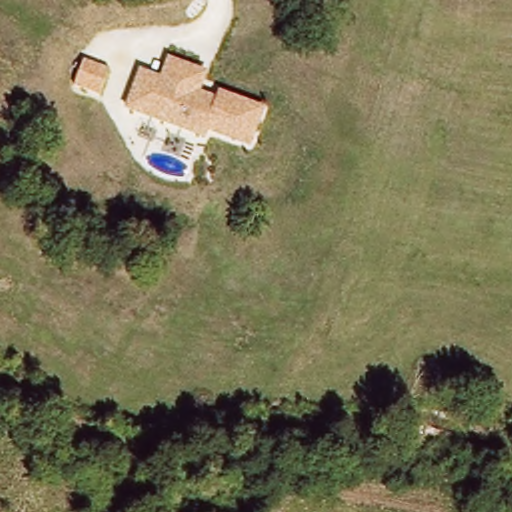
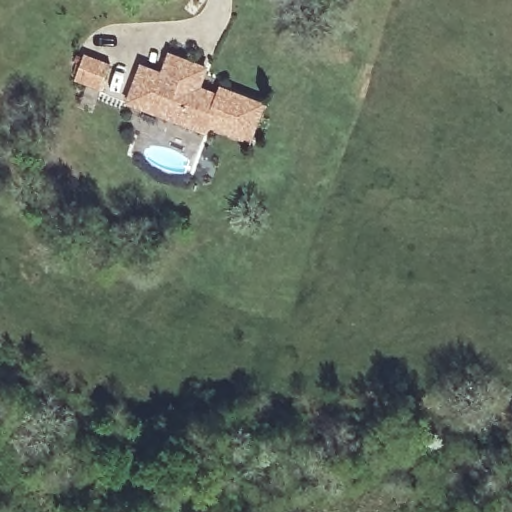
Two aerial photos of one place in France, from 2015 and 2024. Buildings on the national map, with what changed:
unchanged [(209,128),(206,135),(126,104),(141,64),(162,73),(169,51),(209,65),(202,87),(218,93),(220,86),(268,104),(252,144),(209,128)]

